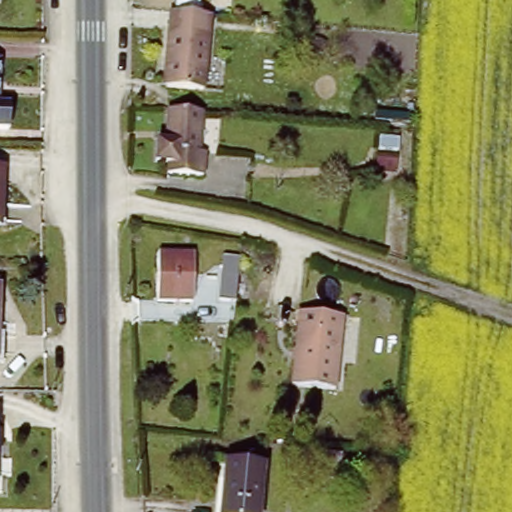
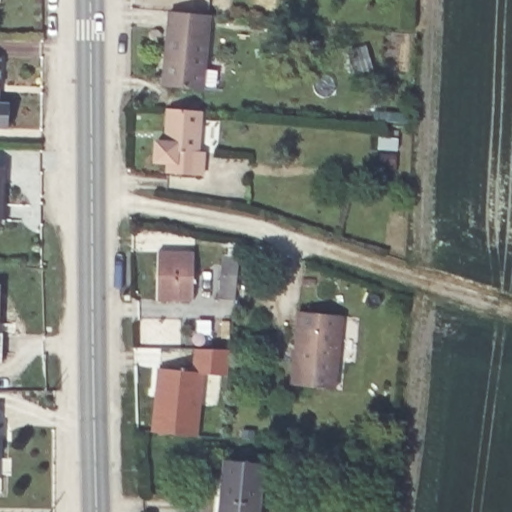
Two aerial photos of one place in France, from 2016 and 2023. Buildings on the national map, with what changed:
unchanged [(203,86),(170,84),(173,53),(167,53),(171,9),(210,13),(203,86)]
new [(368,45),(373,69),(354,74),(349,49),(368,45)]
unchanged [(0,129),(0,64),(3,64),(0,104),(14,105),(12,130),(0,129)]
unchanged [(202,152),(207,153),(206,174),(170,172),(171,159),(158,159),(160,140),(172,141),(175,109),(205,111),(202,152)]
unchanged [(9,168),(5,224),(0,224),(0,167),(9,168)]
unchanged [(199,254),(193,301),(161,297),(166,250),(199,254)]
unchanged [(236,302),(220,300),(223,258),(240,259),(236,302)]
unchanged [(345,309),(338,388),(295,384),(302,306),(345,309)]
new [(231,349),(228,377),(206,375),(200,438),(155,434),(162,369),(195,374),(197,349),(231,349)]
unchanged [(270,466),(265,512),(224,512),(230,462),(270,466)]

